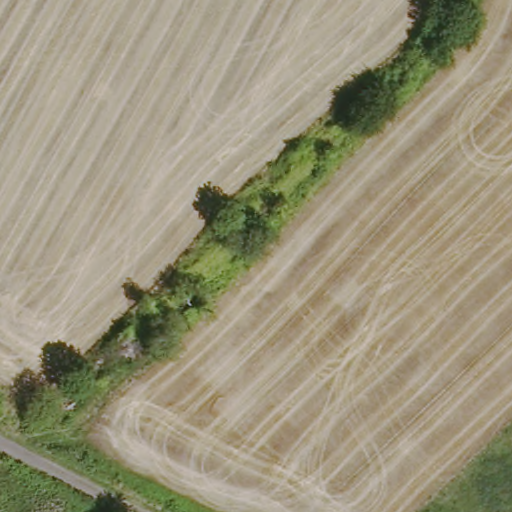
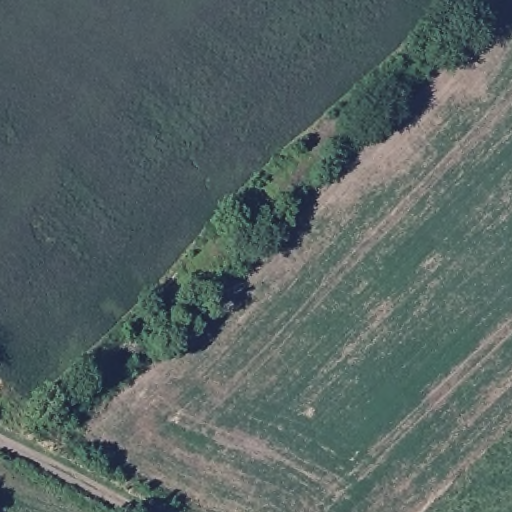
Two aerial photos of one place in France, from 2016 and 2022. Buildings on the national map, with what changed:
[]

